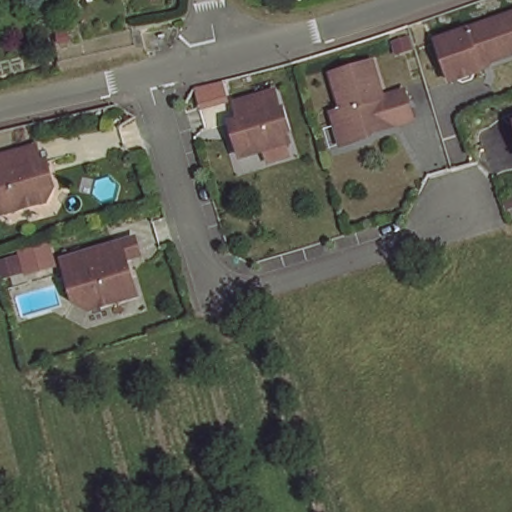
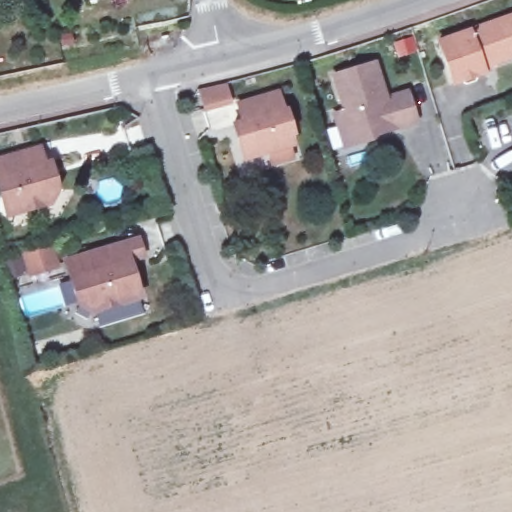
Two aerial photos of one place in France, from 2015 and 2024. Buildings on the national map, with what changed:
unchanged [(482,66),(484,71),(453,82),(438,40),(512,15),(512,55),(482,66)]
unchanged [(417,28),(421,42),(402,48),(398,34),(417,28)]
unchanged [(337,125),(333,113),(343,109),(331,74),(372,61),(384,96),(405,90),(415,120),(370,134),(371,137),(353,143),(344,146),(337,125)]
unchanged [(280,158),(275,145),(252,151),(242,116),(251,113),(246,97),(286,85),(302,137),(305,151),(280,158)]
unchanged [(47,166),(53,164),(57,179),(61,192),(53,205),(10,218),(0,183),(0,162),(43,150),(47,166)]
unchanged [(94,309),(80,301),(68,257),(119,243),(141,237),(145,255),(132,258),(143,295),(94,309)]
unchanged [(21,252),(25,266),(5,272),(0,258),(21,252)]

